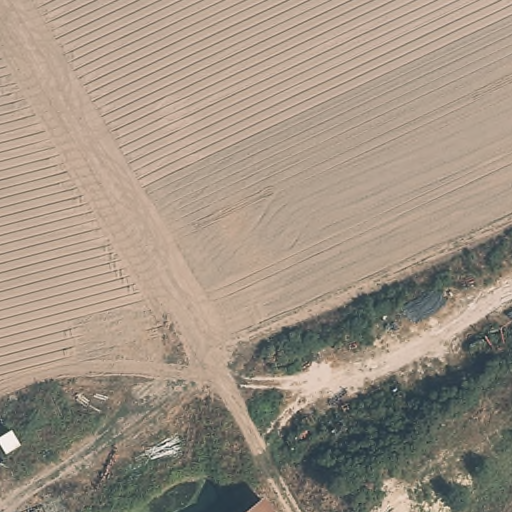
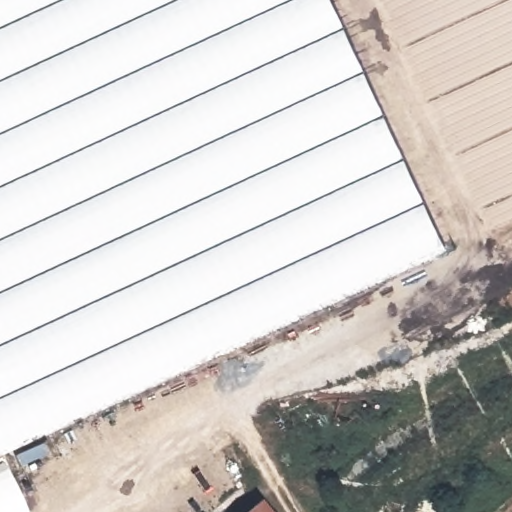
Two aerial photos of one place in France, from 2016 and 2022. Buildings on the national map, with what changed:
new [(0,451),(0,0),(333,0),(446,246),(0,451)]
new [(9,470),(27,512),(0,512),(0,474),(9,470)]
unchanged [(258,503),(266,512),(247,512),(258,503)]

